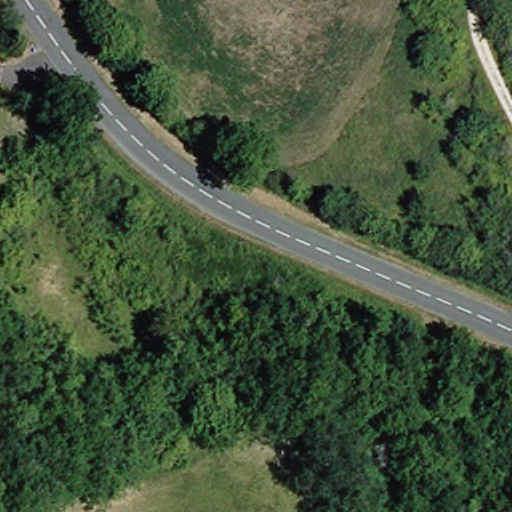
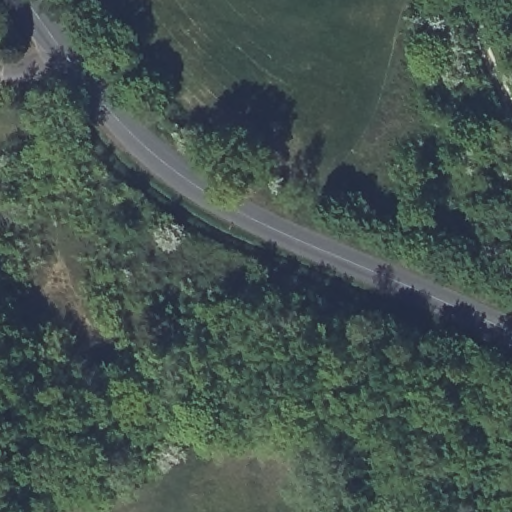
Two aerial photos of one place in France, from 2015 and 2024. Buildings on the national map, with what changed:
[]

